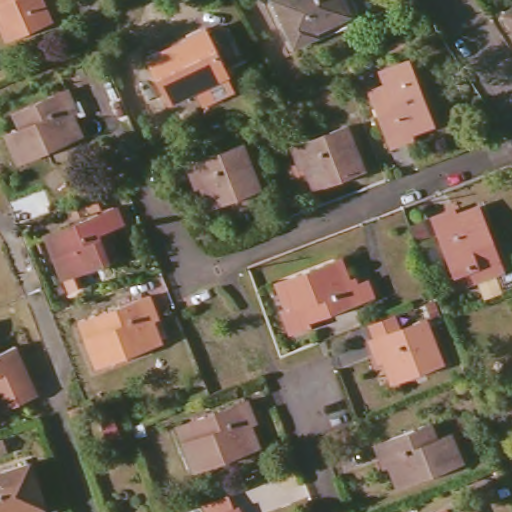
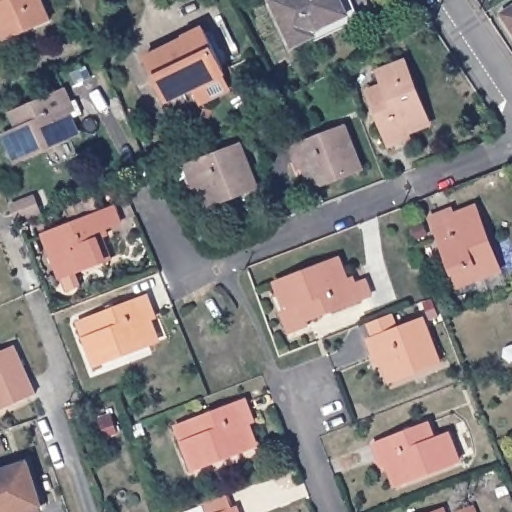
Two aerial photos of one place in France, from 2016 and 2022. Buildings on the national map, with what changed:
unchanged [(0,0),(44,0),(52,19),(28,29),(6,38),(0,24),(0,0)]
unchanged [(348,14),(313,32),(315,36),(293,46),(272,0),(341,0),(348,14)]
unchanged [(504,14),(512,9),(512,26),(504,14)]
unchanged [(227,77),(168,103),(147,56),(205,29),(227,77)]
unchanged [(429,120),(408,128),(401,131),(404,141),(390,146),(368,92),(385,86),(380,72),(407,61),(429,120)]
unchanged [(72,104),(65,108),(67,116),(76,136),(18,161),(7,136),(20,130),(13,114),(66,90),(72,104)]
unchanged [(363,169),(318,187),(310,167),(307,160),(296,163),(290,148),(345,126),(363,169)]
unchanged [(258,188),(212,205),(205,185),(202,178),(192,181),(187,167),(242,144),(258,188)]
unchanged [(121,217),(94,228),(97,235),(105,256),(62,273),(45,231),(115,203),(121,217)]
unchanged [(450,222),(457,220),(478,212),(501,271),(457,287),(431,218),(446,212),(450,222)]
unchanged [(342,281),(345,288),(355,284),(361,299),(293,327),(275,284),(333,261),(342,281)]
unchanged [(154,311),(143,316),(146,323),(155,344),(96,366),(78,322),(93,316),(93,318),(148,296),(154,311)]
unchanged [(442,362),(395,380),(387,360),(384,353),(375,356),(370,341),(424,319),(442,362)]
unchanged [(37,394),(0,411),(0,410),(0,352),(15,346),(37,394)]
unchanged [(252,416),(242,419),(244,428),(252,448),(194,470),(178,428),(247,402),(252,416)]
unchanged [(435,440),(449,434),(460,461),(400,484),(392,465),(389,456),(380,460),(374,445),(428,424),(435,440)]
unchanged [(16,508),(17,512),(0,512),(0,473),(27,464),(39,499),(16,508)]
unchanged [(201,512),(200,508),(227,497),(233,512),(237,510),(238,512),(201,512)]
unchanged [(449,512),(462,507),(465,512),(449,512)]
unchanged [(427,512),(432,510),(433,512),(427,512)]

